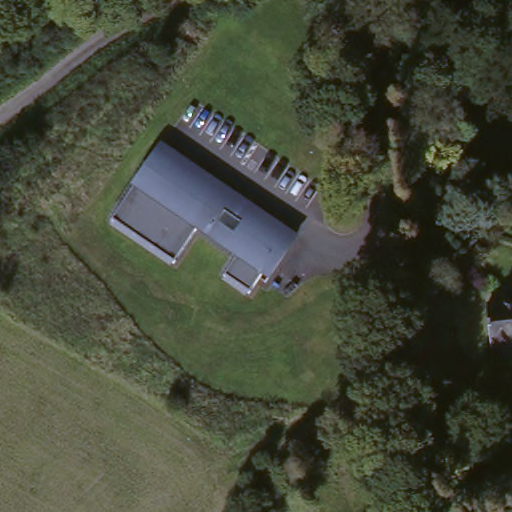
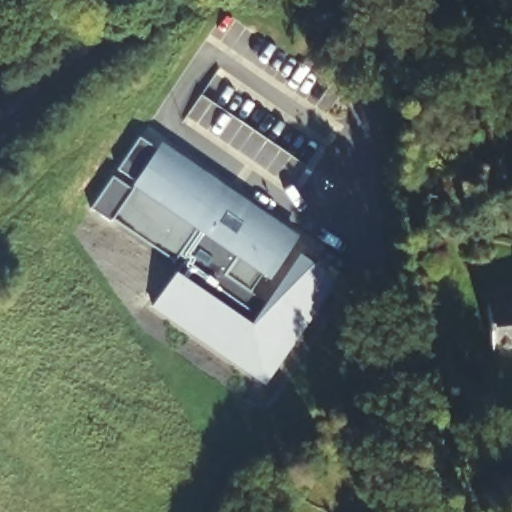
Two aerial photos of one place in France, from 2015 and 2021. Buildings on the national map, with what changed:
unchanged [(155,144),(293,229),(277,255),(271,251),(249,285),(225,271),(239,251),(195,223),(172,260),(107,219),(155,144)]
new [(151,308),(185,258),(177,252),(194,225),(195,223),(239,251),(225,271),(249,285),(267,296),(298,254),(337,282),(265,384),(151,308)]
unchanged [(485,307),(512,303),(512,346),(490,348),(485,307)]

